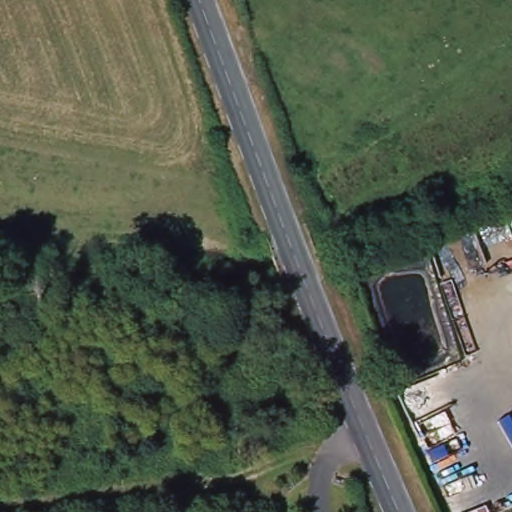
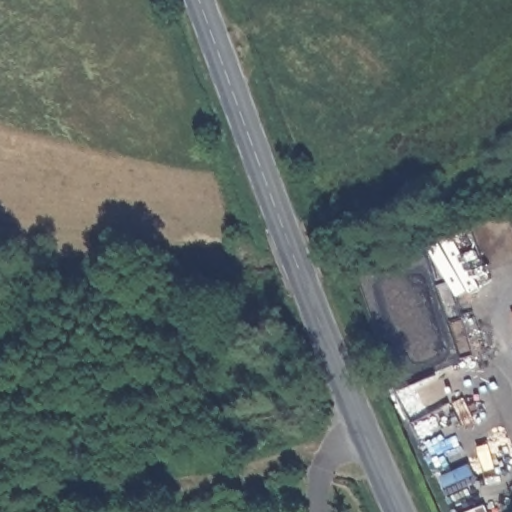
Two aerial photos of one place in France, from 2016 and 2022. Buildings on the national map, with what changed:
unchanged [(235,502),(256,491),(269,512),(240,512),(235,502)]

